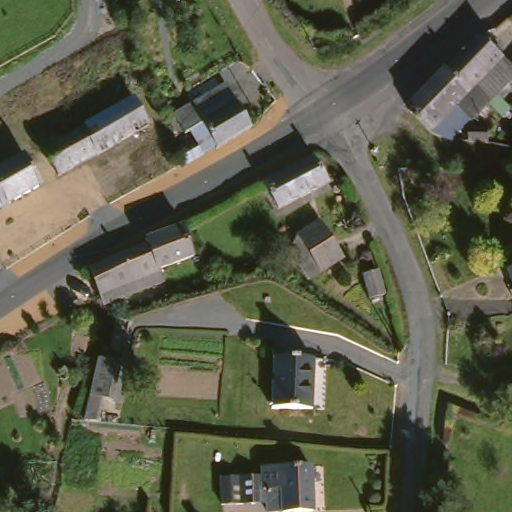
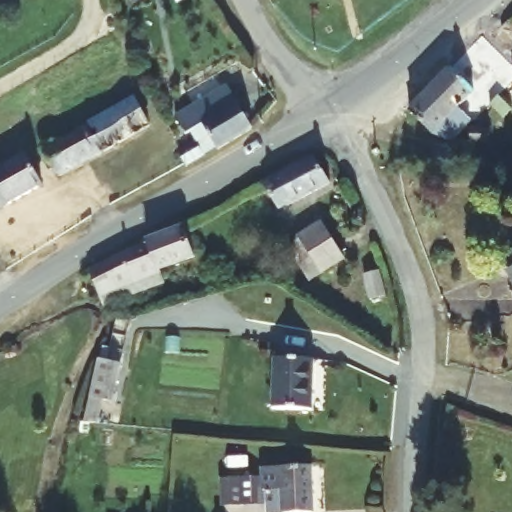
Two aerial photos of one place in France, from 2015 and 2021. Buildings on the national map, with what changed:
unchanged [(512,77),(451,135),(443,134),(433,128),(406,104),(481,31),(511,60),(512,61),(512,77)]
unchanged [(512,59),(512,61),(511,60),(512,59)]
unchanged [(191,160),(183,141),(201,129),(197,123),(191,128),(180,105),(231,75),(257,121),(191,160)]
unchanged [(32,153),(117,104),(136,93),(146,121),(129,131),(47,179),(32,153)]
unchanged [(476,138),(468,137),(469,123),(486,124),(486,139),(476,138)]
unchanged [(44,178),(0,204),(0,160),(27,147),(44,178)]
unchanged [(318,179),(274,203),(260,180),(305,156),(318,179)]
unchanged [(293,242),(311,229),(326,218),(344,245),(344,253),(311,272),(294,246),(293,242)]
unchanged [(123,254),(132,249),(135,247),(151,242),(149,239),(184,220),(196,245),(162,263),(137,277),(120,287),(107,294),(94,271),(109,261),(123,254)]
unchanged [(512,270),(512,288),(505,273),(512,270)]
unchanged [(375,275),(381,300),(366,303),(360,279),(375,275)]
unchanged [(272,358),(310,359),(310,413),(269,410),(272,358)]
unchanged [(90,362),(111,364),(107,403),(83,402),(90,362)]
unchanged [(222,478),(264,475),(263,466),(314,464),(316,509),(272,512),(272,504),(224,507),(222,478)]

